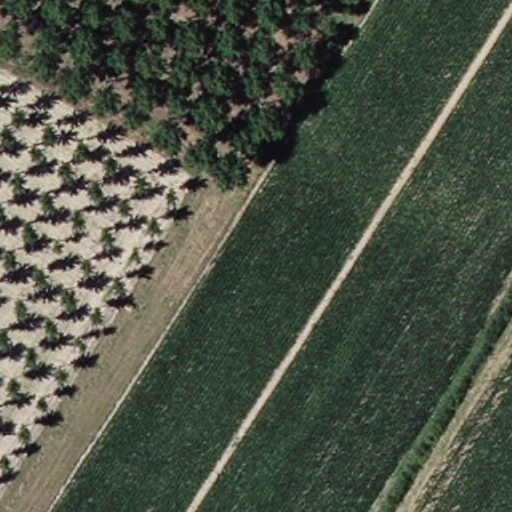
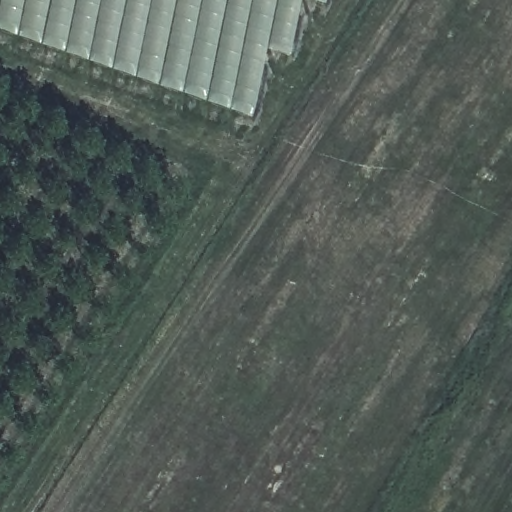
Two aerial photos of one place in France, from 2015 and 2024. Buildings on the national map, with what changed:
new [(265,49),(251,118),(0,32),(0,0),(300,0),(291,56),(265,49)]
new [(310,0),(325,0),(325,4),(310,0)]

